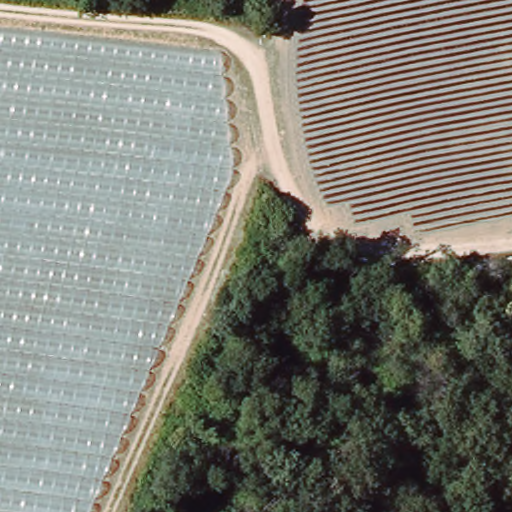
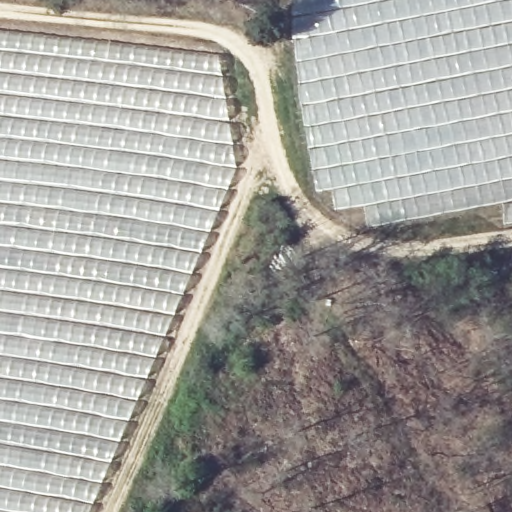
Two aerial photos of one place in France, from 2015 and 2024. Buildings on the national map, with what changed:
demolished [(397,230),(325,210),(287,43),(287,0),(512,0),(512,221),(397,230)]
new [(294,0),(512,0),(512,224),(505,225),(501,203),(376,223),(368,222),(365,205),(335,209),(331,189),(316,191),(301,115),(292,32),(294,0)]

